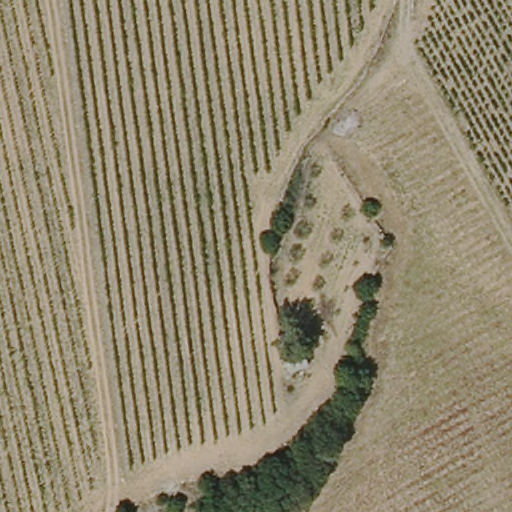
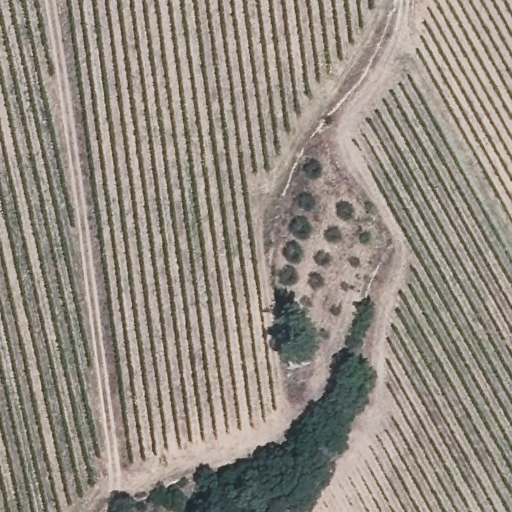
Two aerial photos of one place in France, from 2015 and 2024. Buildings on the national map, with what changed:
unchanged [(288,371),(282,350),(305,343),(311,362),(288,371)]

